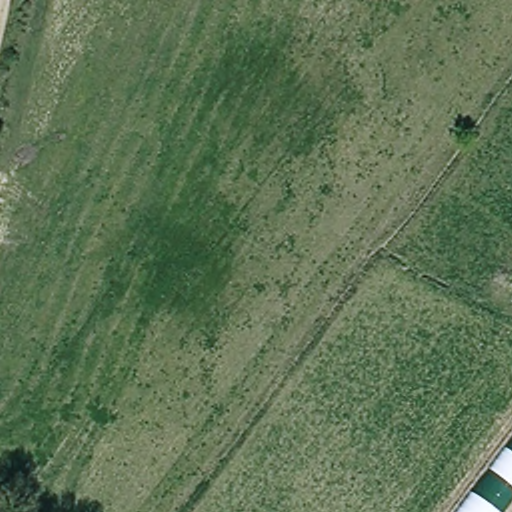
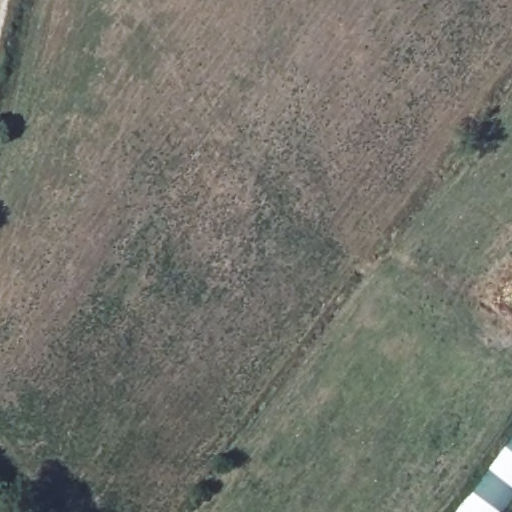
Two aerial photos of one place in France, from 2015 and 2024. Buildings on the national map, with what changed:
unchanged [(498,512),(457,512),(512,441),(512,493),(498,512)]

